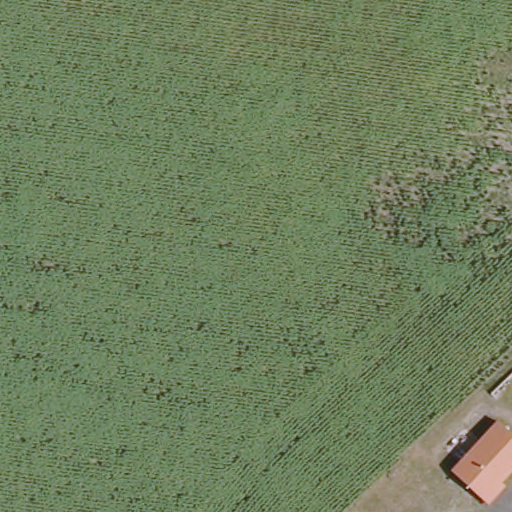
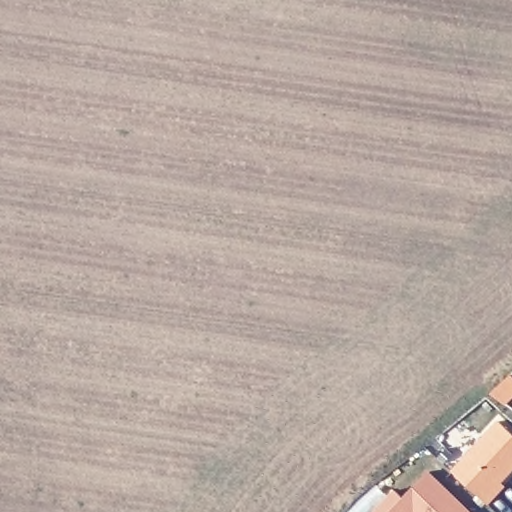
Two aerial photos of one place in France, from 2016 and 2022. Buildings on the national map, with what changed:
unchanged [(499,425),(512,435),(512,477),(500,491),(503,494),(492,506),(456,475),(499,425)]
new [(374,511),(394,490),(403,498),(429,472),(470,512),(375,512),(374,511)]

